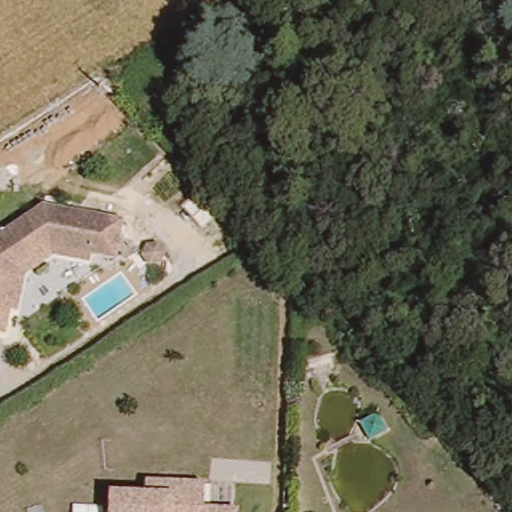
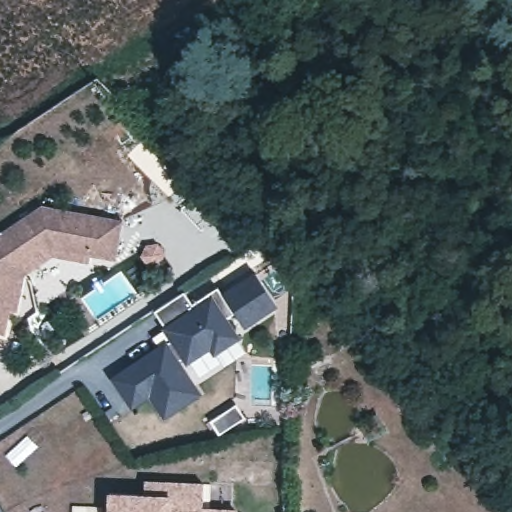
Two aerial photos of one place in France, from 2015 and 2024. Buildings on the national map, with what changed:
unchanged [(122,217),(114,256),(90,251),(51,244),(16,266),(10,301),(5,326),(0,325),(0,229),(41,202),(122,217)]
unchanged [(90,251),(88,261),(53,254),(25,272),(19,303),(10,301),(16,266),(51,244),(90,251)]
new [(193,303),(218,287),(222,293),(256,270),(280,305),(246,327),(236,312),(228,317),(241,337),(213,356),(209,348),(183,365),(202,392),(164,418),(150,396),(131,408),(111,378),(170,340),(161,327),(165,325),(154,310),(183,291),(193,303)]
new [(236,403),(245,417),(226,428),(218,433),(210,418),(218,414),(236,403)]
unchanged [(113,486),(148,488),(148,475),(207,477),(206,502),(206,512),(112,512),(113,486)]
unchanged [(239,503),(239,512),(206,512),(206,502),(239,503)]

